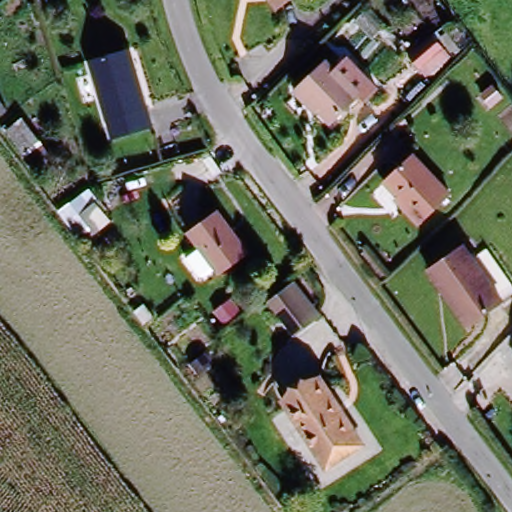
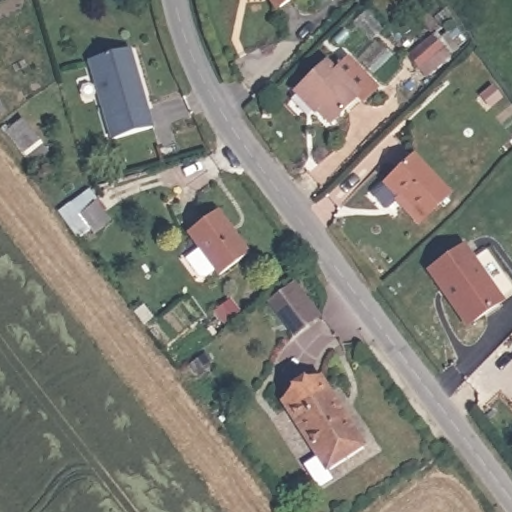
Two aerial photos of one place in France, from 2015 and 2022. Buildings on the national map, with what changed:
unchanged [(281,5),(276,0),(287,0),(281,5)]
unchanged [(433,38),(442,50),(419,70),(409,58),(433,38)]
unchanged [(110,142),(89,65),(129,54),(150,131),(110,142)]
unchanged [(352,103),(324,132),(289,98),(317,69),(327,78),(339,66),(370,95),(357,108),(352,103)]
unchanged [(384,184),(412,156),(450,196),(420,226),(402,210),(406,207),(384,184)]
unchanged [(109,221),(97,236),(77,221),(88,206),(109,221)]
unchanged [(217,277),(185,235),(213,213),(245,255),(217,277)]
unchanged [(498,302),(462,326),(424,268),(460,244),(498,302)]
unchanged [(321,318),(294,338),(267,301),(294,279),(321,318)]
unchanged [(282,406),(322,381),(365,450),(327,474),(282,406)]

